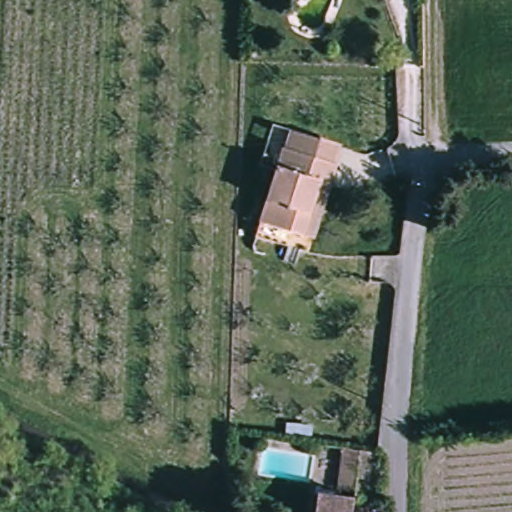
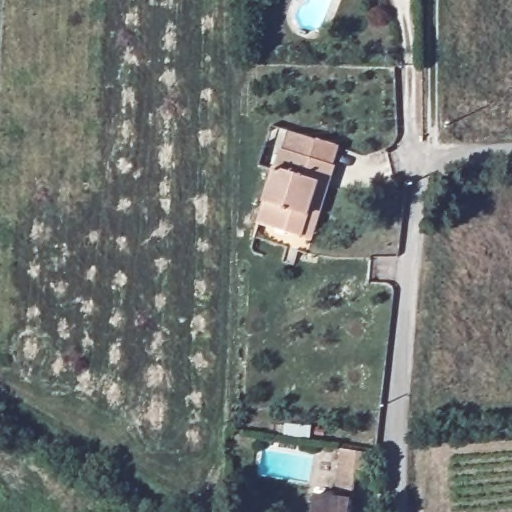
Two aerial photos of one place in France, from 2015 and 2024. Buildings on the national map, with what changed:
unchanged [(302,246),(259,233),(276,180),(259,175),(272,135),(339,155),(333,175),(336,175),(329,195),(311,250),(302,246)]
unchanged [(341,445),(371,449),(368,475),(355,473),(354,487),(337,485),(341,445)]
unchanged [(350,512),(313,512),(316,489),(352,493),(350,512)]

